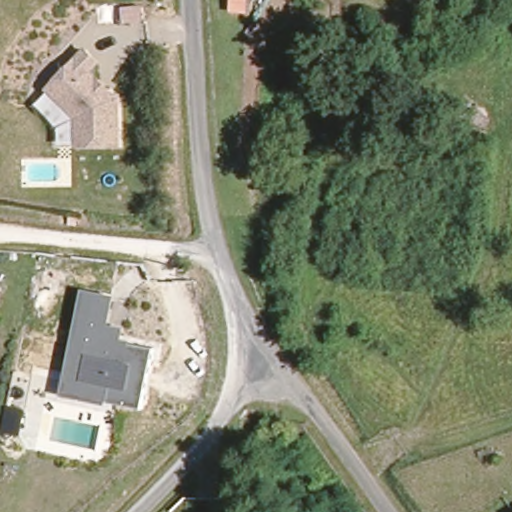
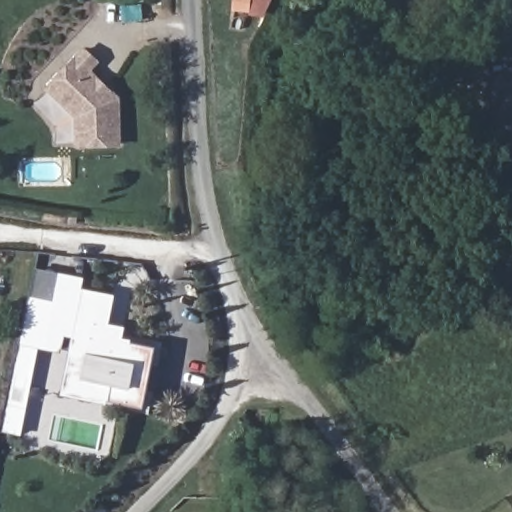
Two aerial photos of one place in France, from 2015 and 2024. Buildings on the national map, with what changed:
unchanged [(105,65),(96,74),(125,102),(125,147),(84,148),(84,120),(55,91),(92,52),(105,65)]
new [(23,345),(20,345),(36,268),(85,278),(82,290),(84,290),(74,337),(66,336),(62,352),(40,348),(21,435),(3,432),(23,345)]
unchanged [(74,337),(84,290),(116,297),(111,324),(126,327),(124,337),(156,347),(143,408),(61,395),(74,337)]

